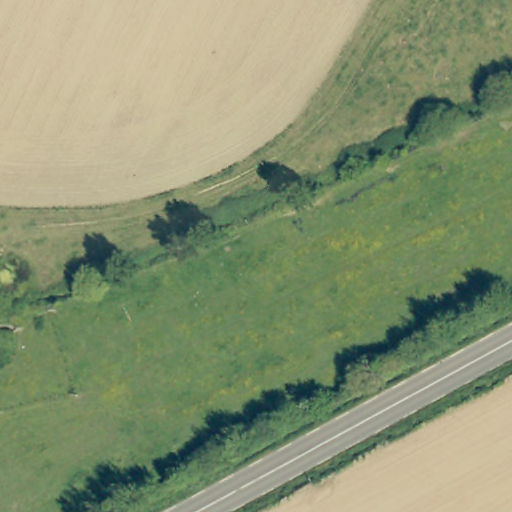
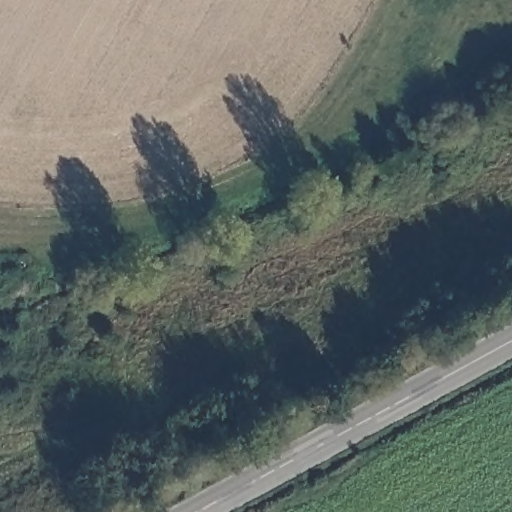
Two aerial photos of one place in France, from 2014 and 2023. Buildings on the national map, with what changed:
[]

